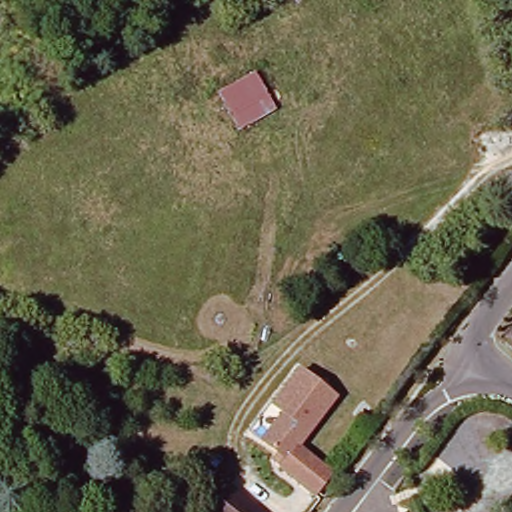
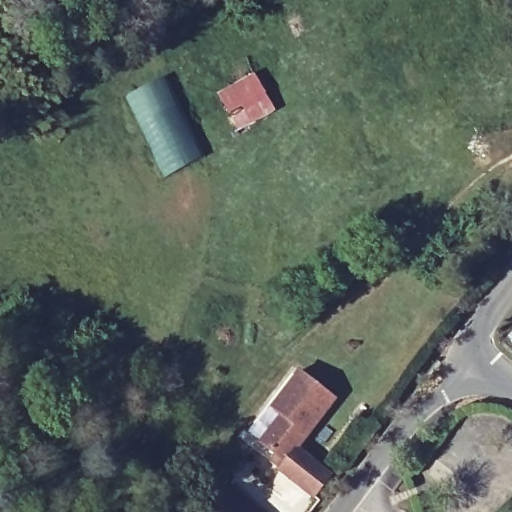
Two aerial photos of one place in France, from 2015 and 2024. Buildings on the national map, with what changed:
unchanged [(254,72),(276,110),(239,130),(218,90),(254,72)]
new [(164,75),(204,156),(164,178),(124,96),(164,75)]
unchanged [(276,431),(264,446),(256,442),(279,412),(269,406),(298,368),(336,398),(296,448),(276,431)]
unchanged [(264,446),(276,431),(296,448),(301,452),(303,454),(334,479),(316,500),(283,474),(274,466),(280,459),(264,446)]
unchanged [(208,512),(226,489),(256,512),(208,512)]

